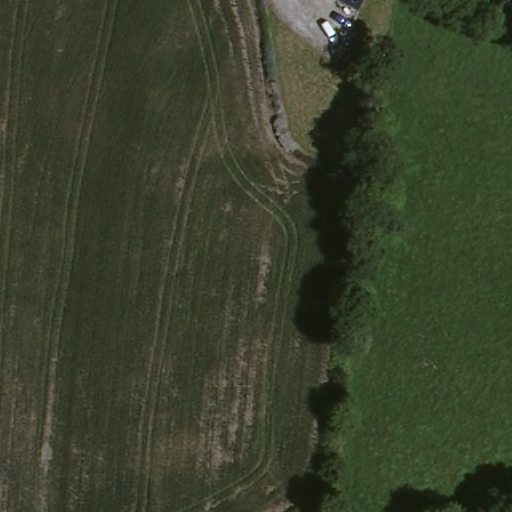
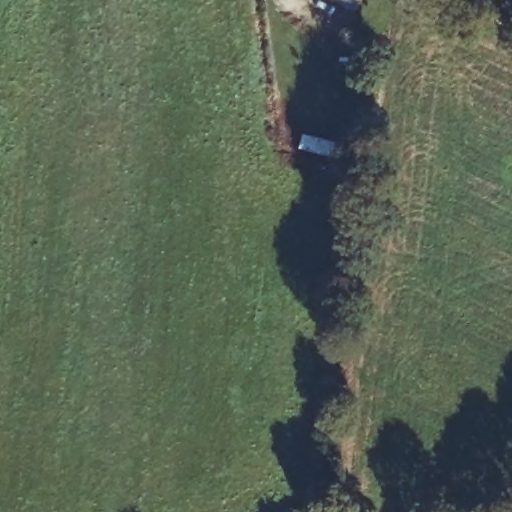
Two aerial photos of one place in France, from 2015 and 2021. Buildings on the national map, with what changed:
unchanged [(343,0),(371,0),(366,10),(343,0)]

